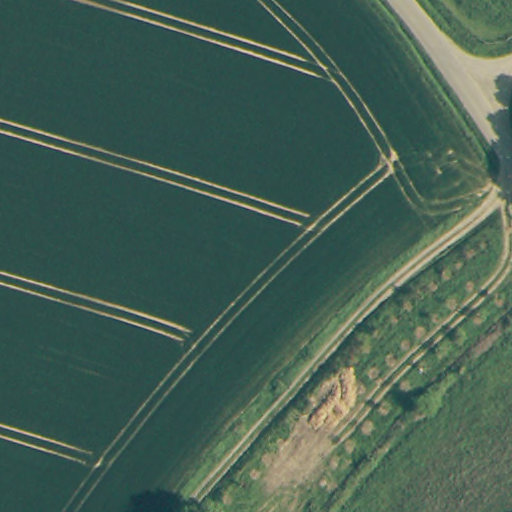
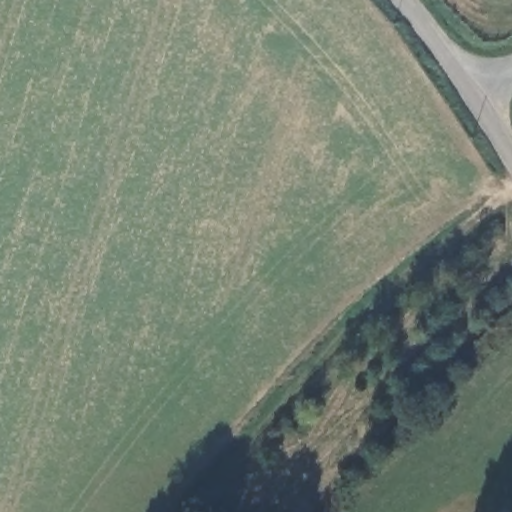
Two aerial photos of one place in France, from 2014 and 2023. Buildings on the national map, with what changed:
[]

